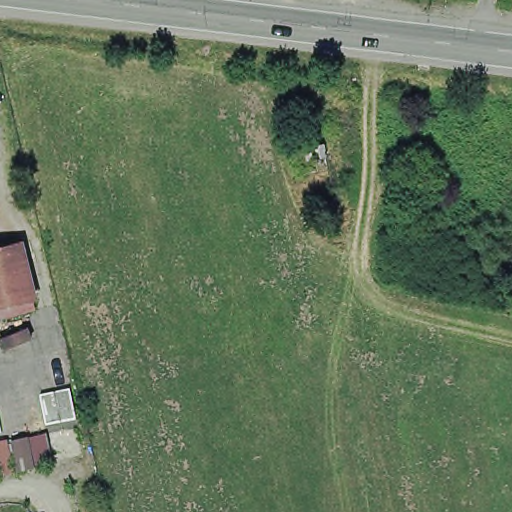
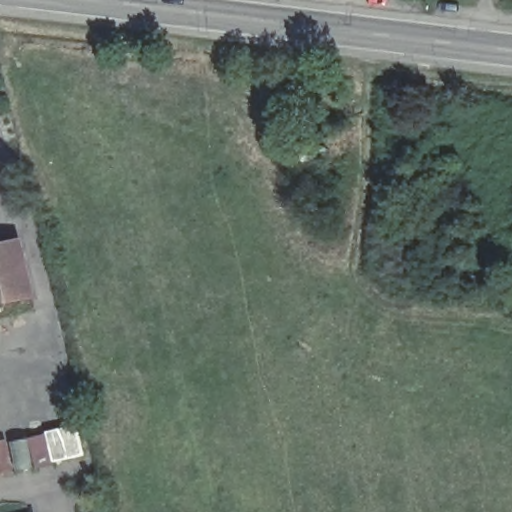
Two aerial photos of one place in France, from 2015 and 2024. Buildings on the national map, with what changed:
unchanged [(0,265),(0,243),(20,238),(25,259),(0,265)]
unchanged [(25,259),(32,291),(35,302),(0,310),(0,265),(25,259)]
unchanged [(8,437),(8,441),(47,432),(46,429),(77,421),(83,455),(51,461),(52,466),(0,474),(0,438),(8,437)]

